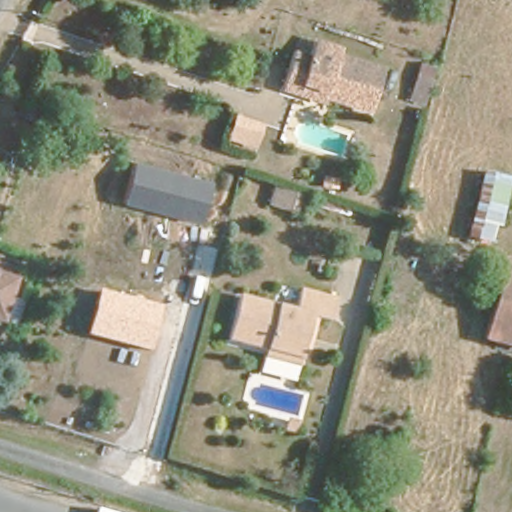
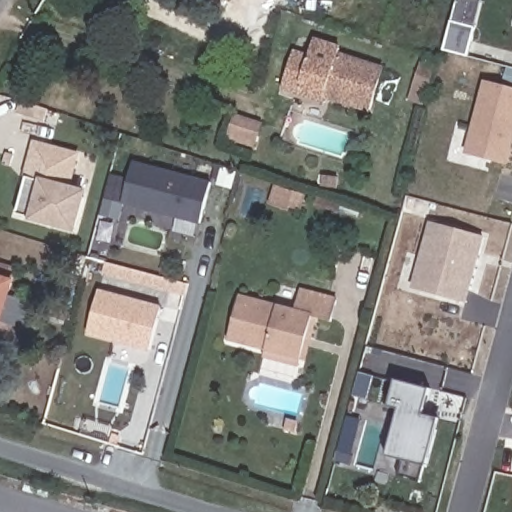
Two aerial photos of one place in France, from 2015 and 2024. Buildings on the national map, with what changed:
new [(462,48),(439,41),(447,13),(470,20),(462,48)]
unchanged [(292,85),(275,81),(288,45),(308,50),(313,35),(354,47),(352,58),(381,67),(369,104),(321,89),(320,95),(292,85)]
new [(502,160),(462,150),(482,80),(512,88),(512,122),(502,160)]
unchanged [(229,135),(234,115),(258,120),(253,141),(229,135)]
new [(34,144),(75,155),(66,188),(83,192),(72,230),(14,214),(34,144)]
unchanged [(200,225),(123,204),(134,162),(212,182),(200,225)]
demolished [(481,164),(512,172),(490,245),(462,235),(481,164)]
unchanged [(269,200),(279,202),(275,215),(275,218),(264,215),(265,211),(269,200)]
new [(418,270),(430,223),(483,237),(465,302),(430,293),(413,288),(418,270)]
demolished [(484,332),(500,271),(512,274),(512,340),(484,332)]
unchanged [(0,272),(17,276),(3,320),(0,319),(0,272)]
unchanged [(151,351),(88,335),(99,290),(162,306),(151,351)]
unchanged [(264,336),(230,326),(238,295),(294,310),(301,290),(330,297),(325,318),(309,315),(298,356),(289,355),(262,347),(264,336)]
new [(428,390),(424,413),(438,416),(425,468),(384,456),(399,407),(389,405),(395,383),(428,390)]

